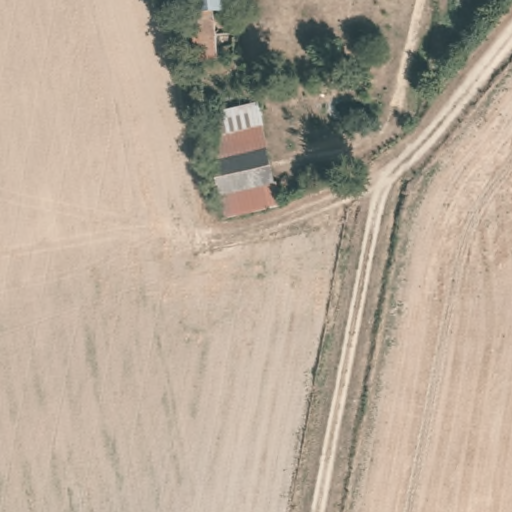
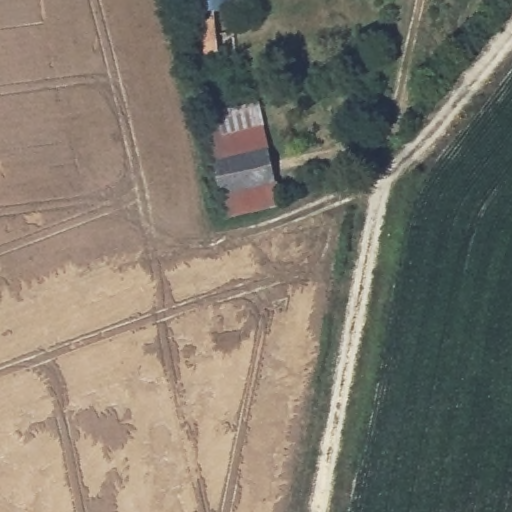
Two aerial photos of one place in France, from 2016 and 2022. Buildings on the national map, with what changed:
unchanged [(210,15),(214,65),(192,66),(186,0),(226,0),(227,14),(210,15)]
unchanged [(257,108),(269,153),(212,167),(202,121),(257,108)]
unchanged [(269,153),(282,202),(225,220),(212,167),(269,153)]

